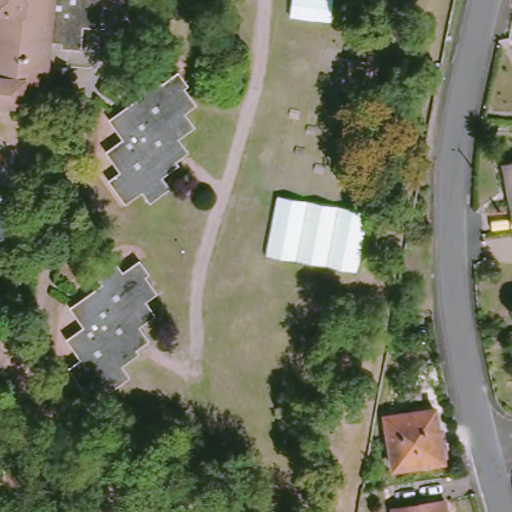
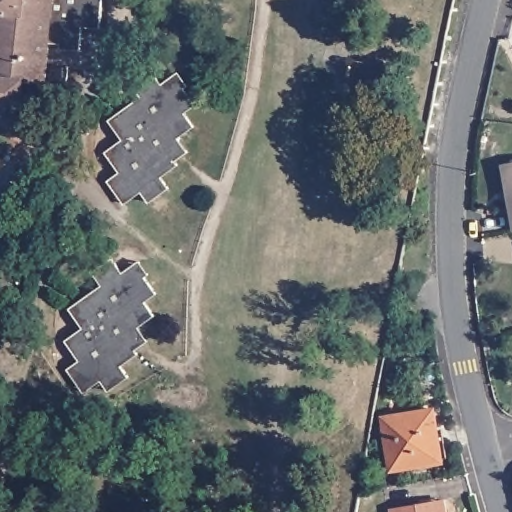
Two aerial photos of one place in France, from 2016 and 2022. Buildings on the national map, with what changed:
unchanged [(81,40),(50,36),(45,73),(53,74),(51,85),(31,83),(29,96),(0,93),(0,0),(106,0),(103,20),(101,20),(84,18),(81,40)]
unchanged [(155,169),(163,180),(144,193),(134,182),(117,194),(105,178),(117,169),(102,149),(120,136),(105,117),(118,108),(138,94),(131,85),(151,71),(160,81),(172,73),(190,96),(177,105),(188,118),(173,130),(186,147),(171,157),(155,169)]
unchanged [(512,162),(512,172),(510,162),(512,162)]
demolished [(355,270),(267,254),(276,193),(368,210),(355,270)]
unchanged [(119,364),(127,375),(106,390),(100,380),(84,391),(70,372),(81,363),(67,344),(85,331),(71,313),(84,304),(105,289),(98,279),(118,266),(125,275),(138,266),(156,291),(143,300),(153,313),(137,324),(150,342),(136,352),(119,364)]
unchanged [(391,469),(384,419),(432,411),(440,461),(391,469)]
unchanged [(392,512),(391,508),(418,503),(435,501),(442,500),(444,512),(393,512),(392,512)]

